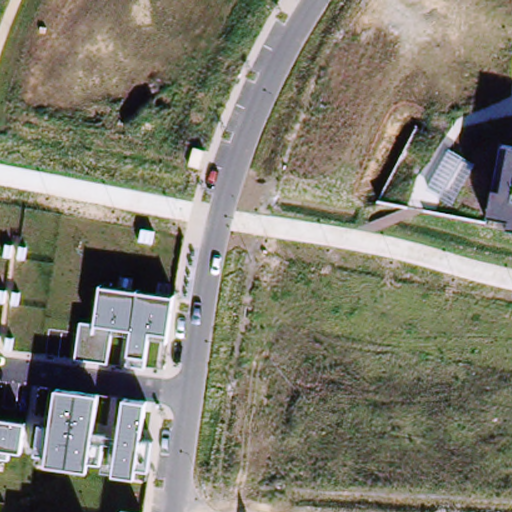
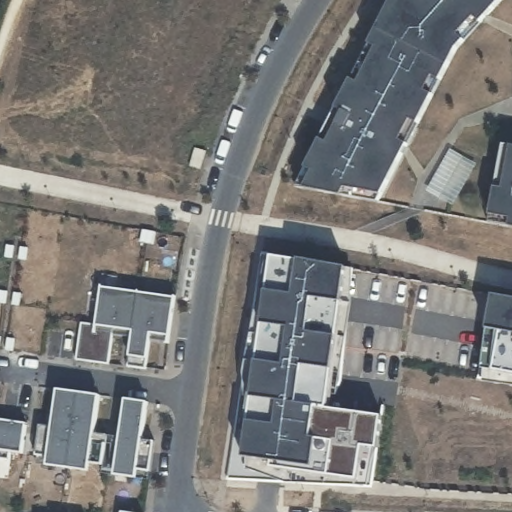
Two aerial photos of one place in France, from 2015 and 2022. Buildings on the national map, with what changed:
new [(380,194),(375,202),(339,196),(303,187),(304,168),(389,4),(393,0),(500,0),(455,47),(380,194)]
unchanged [(490,214),(494,188),(502,145),(511,144),(512,144),(512,227),(510,226),(489,222),(490,214)]
new [(262,255),(270,255),(298,260),(344,267),(352,269),(351,300),(334,395),(327,397),(326,408),(380,415),(375,446),(368,485),(292,482),(226,478),(262,255)]
unchanged [(167,339),(149,336),(146,367),(126,366),(129,336),(111,334),(108,363),(75,359),(80,322),(92,325),(100,287),(173,296),(167,339)]
new [(481,367),(487,326),(492,296),(512,299),(512,386),(482,380),(481,367)]
unchanged [(98,395),(94,431),(117,435),(123,398),(147,402),(141,438),(153,440),(149,472),(137,470),(136,478),(113,475),(117,445),(105,443),(102,465),(91,463),(88,473),(46,466),(46,457),(33,455),(37,426),(50,428),(56,388),(98,395)]
unchanged [(24,422),(21,452),(9,452),(8,460),(0,459),(0,419),(24,422)]
unchanged [(120,510),(130,512),(120,512),(120,510)]

